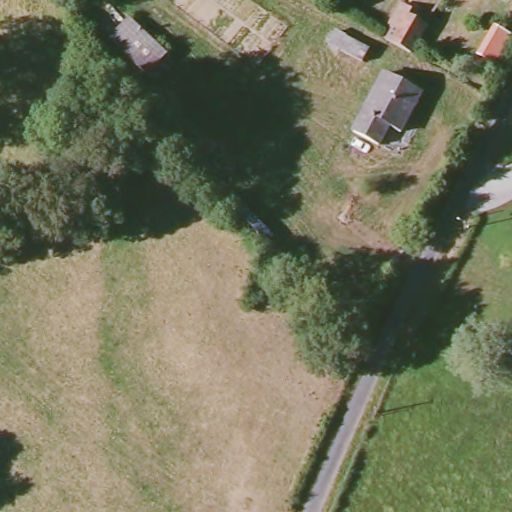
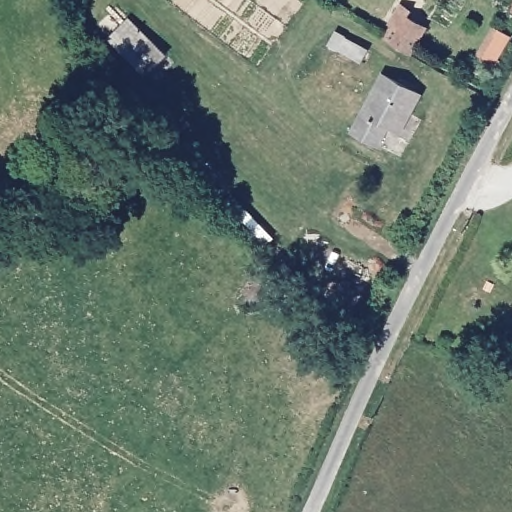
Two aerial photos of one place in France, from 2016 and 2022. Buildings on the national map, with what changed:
unchanged [(407,14),(420,20),(423,23),(411,46),(380,31),(397,0),(403,0),(411,4),(407,14)]
unchanged [(172,53),(154,74),(116,40),(135,19),(172,53)]
unchanged [(368,45),(361,56),(327,38),(335,26),(368,45)]
unchanged [(422,98),(402,136),(390,130),(380,149),(352,135),(382,78),(422,98)]

